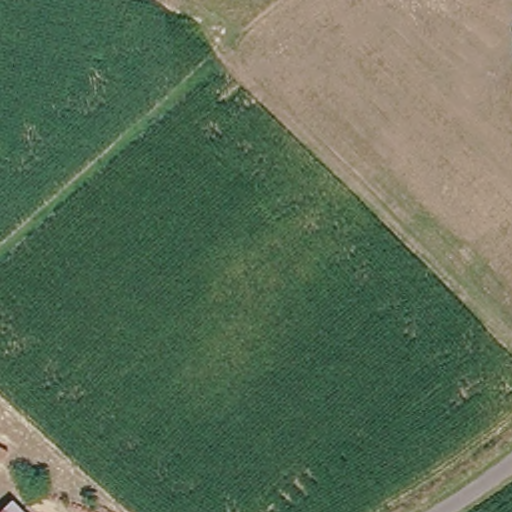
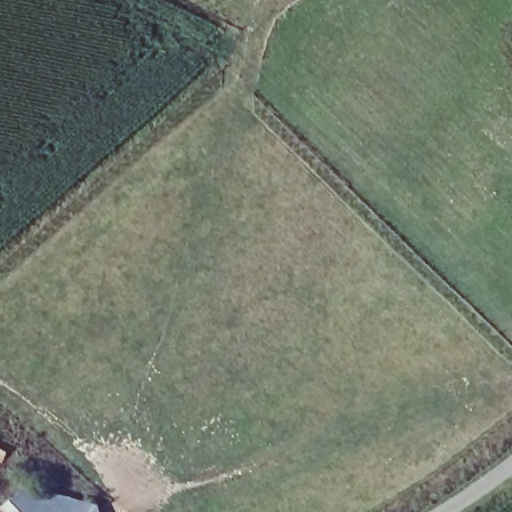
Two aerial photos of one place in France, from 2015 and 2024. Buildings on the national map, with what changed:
new [(0,466),(0,446),(8,450),(0,466)]
new [(24,485),(99,504),(102,512),(23,512),(11,501),(24,485)]
unchanged [(23,512),(0,512),(0,511),(11,501),(23,512)]

